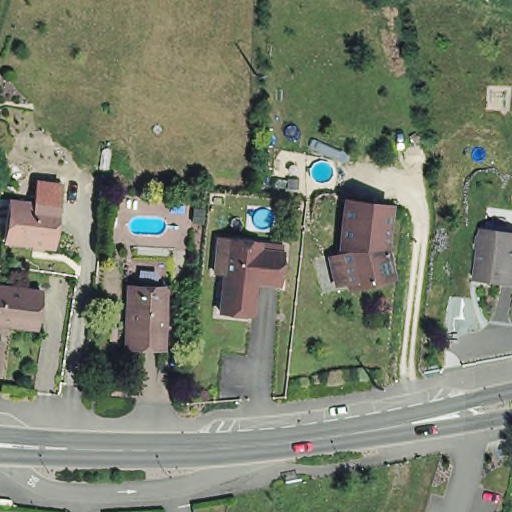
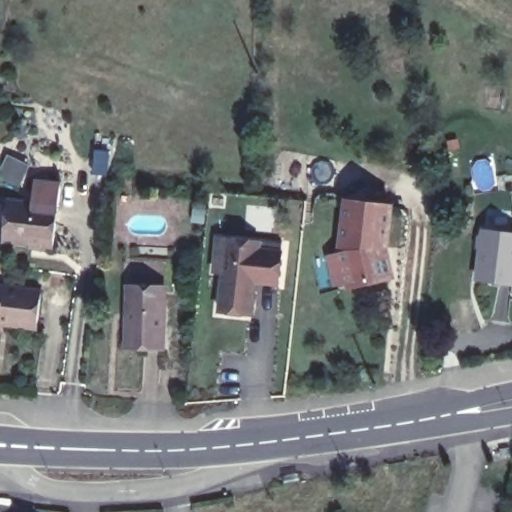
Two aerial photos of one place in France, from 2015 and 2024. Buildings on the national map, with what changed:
unchanged [(4,192),(50,195),(48,249),(3,241),(4,192)]
unchanged [(344,200),(387,204),(382,246),(389,273),(343,287),(336,251),(344,200)]
unchanged [(512,280),(480,275),(489,225),(512,229),(512,280)]
unchanged [(281,238),(281,245),(278,277),(253,274),(251,308),(220,305),(224,266),(213,265),(214,232),(226,233),(257,236),(281,238)]
unchanged [(36,318),(6,315),(0,315),(0,276),(41,280),(36,318)]
unchanged [(126,340),(126,311),(125,282),(125,276),(166,276),(165,281),(166,341),(126,340)]

